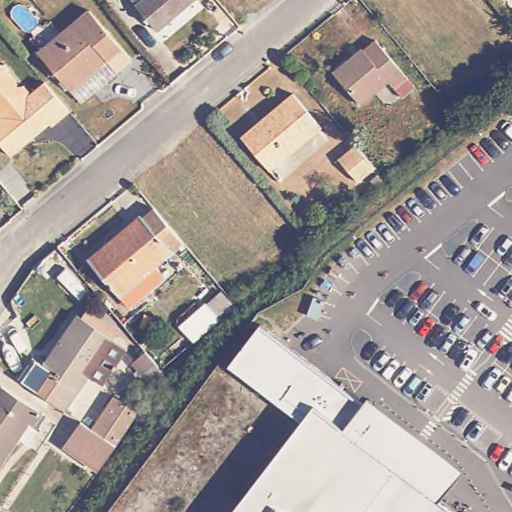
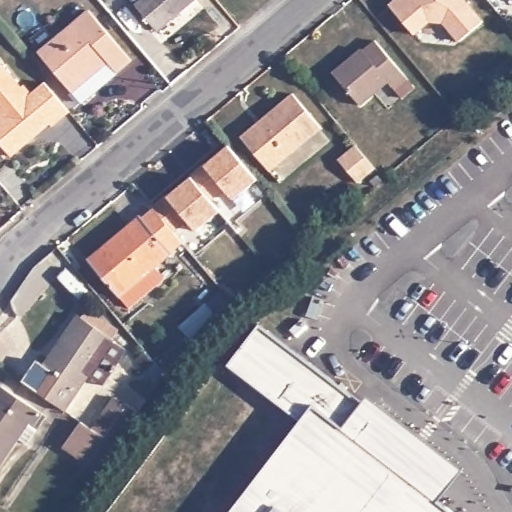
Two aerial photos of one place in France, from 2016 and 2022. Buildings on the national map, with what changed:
unchanged [(162,28),(140,2),(142,0),(197,0),(162,28)]
new [(393,0),(466,0),(484,22),(457,43),(442,24),(429,22),(414,35),(389,3),(393,0)]
unchanged [(67,84),(35,44),(84,3),(126,53),(111,65),(76,95),(67,84)]
unchanged [(407,72),(393,84),(389,79),(362,101),(336,69),(363,47),(365,49),(378,38),(407,72)]
unchanged [(11,154),(0,141),(0,115),(2,113),(0,111),(0,64),(3,61),(22,84),(25,82),(32,91),(45,80),(70,109),(53,124),(51,121),(34,135),(11,154)]
unchanged [(256,122),(267,113),(294,91),(322,125),(271,167),(243,133),(256,122)]
unchanged [(360,143),(379,165),(362,179),(343,157),(360,143)]
new [(228,145),(257,180),(233,200),(225,190),(212,200),(220,212),(195,232),(188,223),(171,235),(149,210),(228,145)]
unchanged [(110,293),(79,257),(133,212),(134,214),(145,205),(148,208),(175,239),(174,239),(147,263),(157,275),(120,305),(110,293)]
unchanged [(231,301),(217,314),(205,301),(219,289),(231,301)]
unchanged [(93,382),(79,372),(68,387),(33,361),(70,311),(104,336),(103,337),(117,347),(93,382)]
unchanged [(232,366),(263,331),(349,390),(335,414),(350,424),(369,398),(460,463),(438,489),(464,512),(232,512),(309,412),(232,366)]
unchanged [(159,381),(144,364),(154,355),(167,370),(159,381)]
unchanged [(33,361),(68,387),(55,406),(13,377),(27,356),(33,361)]
unchanged [(1,381),(43,408),(33,422),(28,419),(0,460),(0,382),(1,381)]
unchanged [(91,429),(115,397),(138,413),(114,445),(91,429)]
unchanged [(61,445),(78,420),(91,429),(114,445),(96,469),(61,445)]

